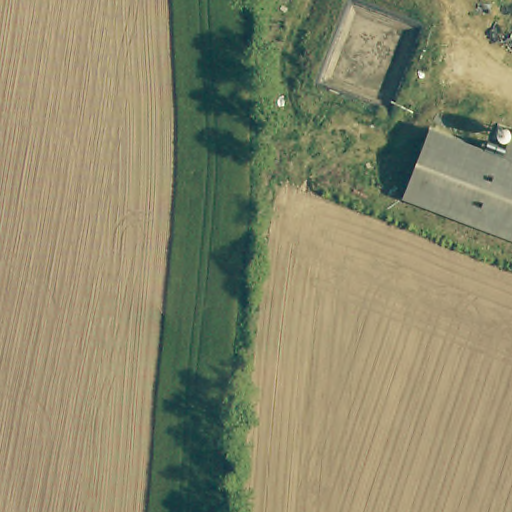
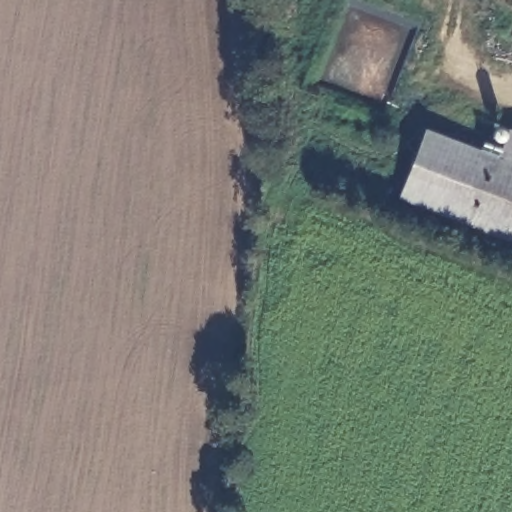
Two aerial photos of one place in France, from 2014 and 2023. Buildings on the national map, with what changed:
unchanged [(505,127),(512,129),(512,240),(395,197),(420,129),(494,157),(505,127)]

